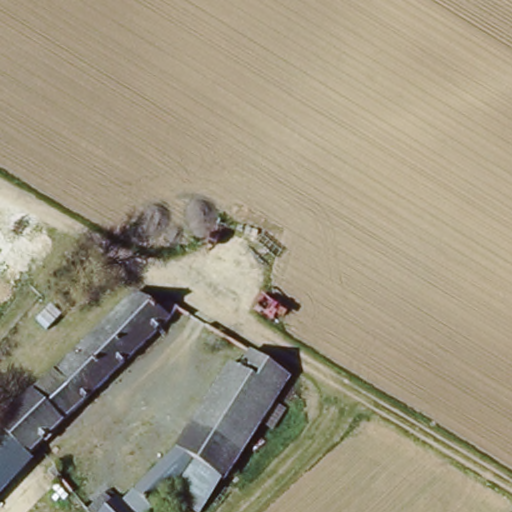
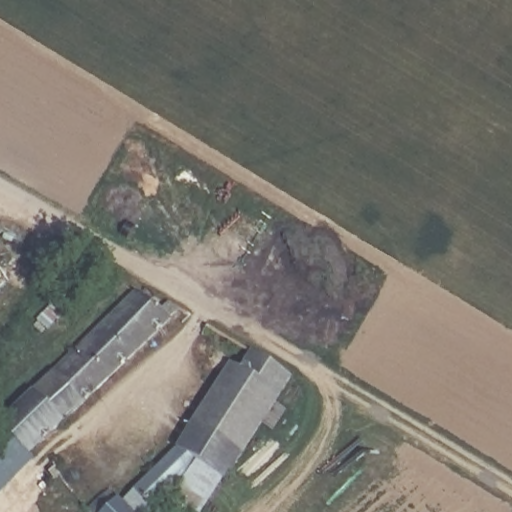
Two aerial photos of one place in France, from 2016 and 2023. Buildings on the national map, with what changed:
unchanged [(0,424),(126,304),(146,324),(157,309),(170,316),(29,454),(0,426),(0,424)]
unchanged [(132,500),(180,454),(236,366),(247,373),(255,361),(289,381),(212,499),(186,482),(170,499),(157,512),(143,512),(142,511),(141,512),(96,512),(90,506),(115,483),(132,500)]
unchanged [(35,463),(17,482),(0,465),(0,426),(29,454),(35,463)]
unchanged [(0,502),(0,465),(17,482),(0,502)]

